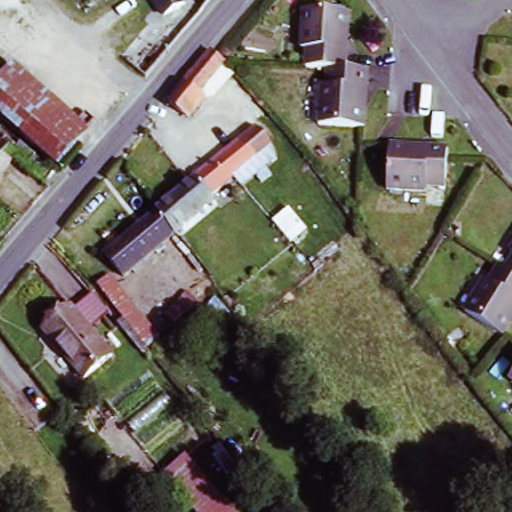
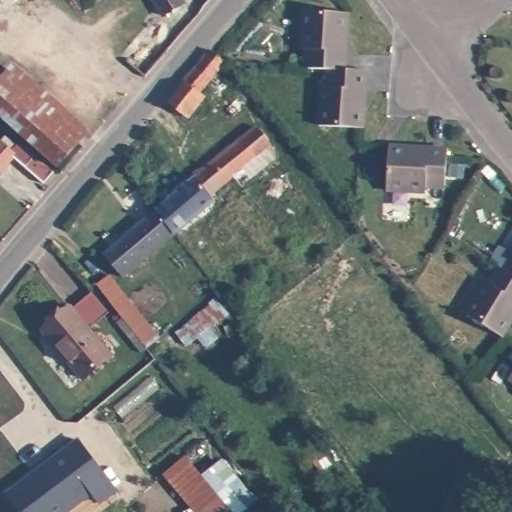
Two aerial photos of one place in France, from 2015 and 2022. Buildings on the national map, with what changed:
unchanged [(305,69),(306,49),(301,49),(304,12),(347,15),(346,35),(341,35),(340,52),(345,52),(344,70),(327,70),(305,69)]
unchanged [(209,47),(224,60),(200,89),(204,92),(187,112),(168,97),(188,73),(209,47)]
unchanged [(0,73),(13,59),(90,127),(57,162),(2,112),(0,115),(0,73)]
unchanged [(361,92),(360,110),(365,110),(363,130),(319,127),(321,89),(326,89),(327,70),(344,70),(367,72),(365,92),(361,92)]
unchanged [(269,173),(261,179),(256,173),(242,184),(234,174),(211,191),(216,196),(173,230),(158,208),(158,207),(156,205),(256,124),(272,145),(276,156),(264,166),(269,173)]
unchanged [(16,150),(25,140),(55,166),(43,178),(15,152),(0,168),(0,137),(0,136),(16,150)]
unchanged [(411,149),(429,150),(429,145),(445,146),(444,185),(425,184),(424,190),(388,187),(391,144),(410,145),(411,149)]
unchanged [(123,272),(105,251),(158,207),(158,208),(173,230),(123,272)]
unchanged [(512,245),(512,249),(510,247),(512,245)]
unchanged [(512,255),(512,273),(504,268),(512,255)]
unchanged [(512,316),(512,317),(501,332),(463,308),(482,278),(487,281),(497,264),(504,268),(512,273),(512,307),(508,313),(512,316)]
unchanged [(158,339),(148,347),(147,347),(98,285),(108,276),(158,339)]
unchanged [(190,293),(200,305),(195,310),(175,326),(164,313),(190,293)]
unchanged [(110,354),(81,380),(41,326),(67,305),(110,354)]
unchanged [(512,371),(512,379),(508,376),(512,371)]
new [(113,489),(97,501),(90,490),(60,512),(20,512),(5,491),(76,438),(113,489)]
unchanged [(195,512),(165,475),(185,456),(231,512),(195,512)]
new [(259,501),(245,512),(231,512),(202,477),(225,459),(259,501)]

